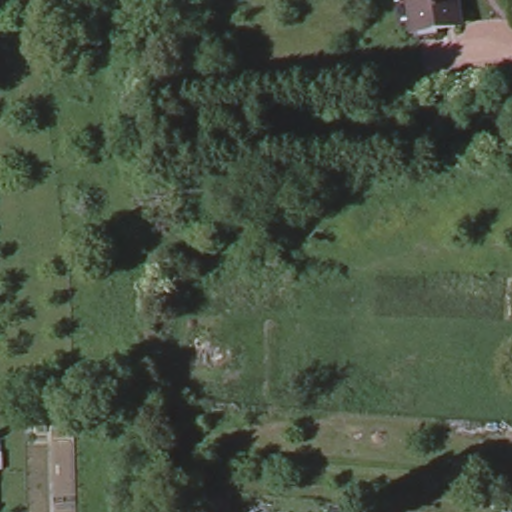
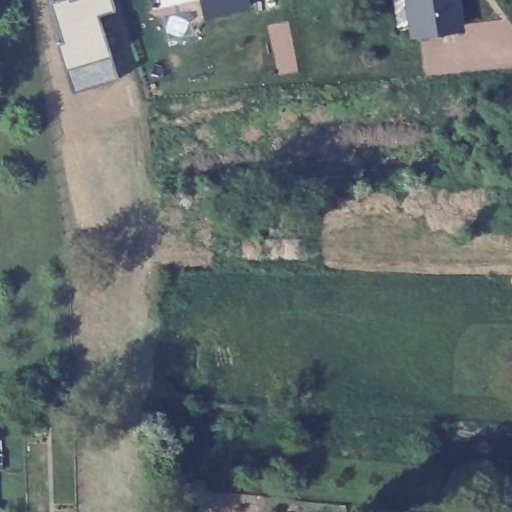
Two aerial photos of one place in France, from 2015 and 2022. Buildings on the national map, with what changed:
new [(115,13),(97,18),(118,81),(73,95),(58,47),(65,44),(51,5),(56,3),(55,0),(111,0),(115,13)]
new [(251,6),(204,17),(200,0),(250,0),(251,6)]
unchanged [(413,0),(461,0),(462,12),(463,22),(417,29),(415,18),(413,0)]

